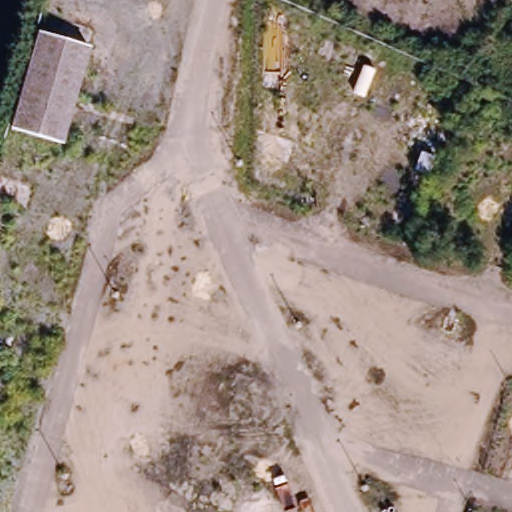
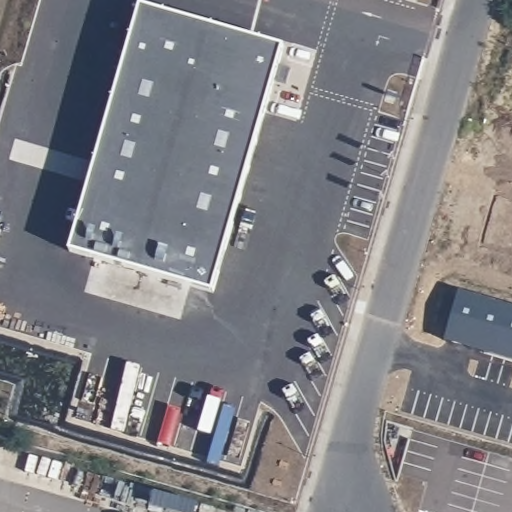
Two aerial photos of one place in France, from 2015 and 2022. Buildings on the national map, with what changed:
new [(147,13),(306,52),(227,310),(97,278),(147,13)]
new [(459,295),(512,310),(512,363),(445,344),(459,295)]

